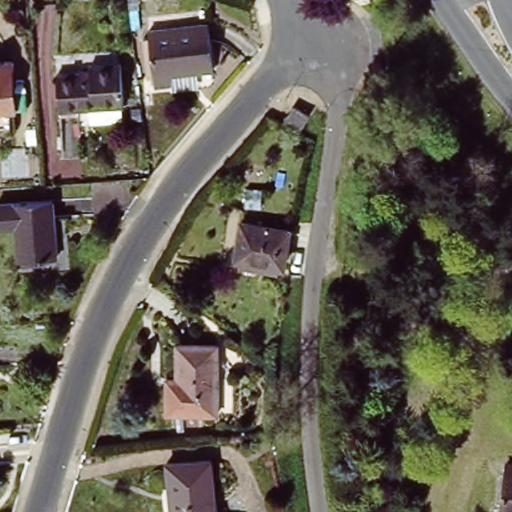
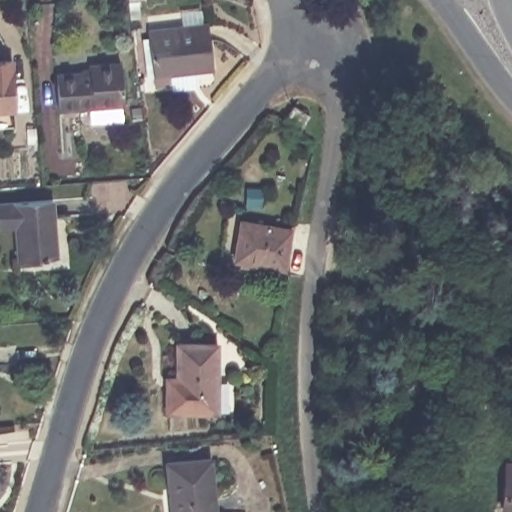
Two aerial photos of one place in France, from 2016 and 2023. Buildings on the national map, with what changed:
unchanged [(162,84),(162,80),(147,82),(137,27),(197,18),(204,65),(187,69),(187,81),(162,84)]
unchanged [(119,102),(116,102),(117,117),(80,121),(79,107),(54,110),(54,65),(107,60),(114,59),(119,102)]
unchanged [(14,61),(17,110),(0,111),(0,62),(14,61)]
unchanged [(308,114),(298,130),(284,120),(294,105),(308,114)]
unchanged [(13,225),(0,225),(0,204),(50,200),(55,258),(15,261),(13,225)]
unchanged [(279,230),(280,267),(232,268),(232,231),(279,230)]
unchanged [(172,377),(173,345),(215,346),(213,415),(162,414),(162,389),(163,377),(172,377)]
unchanged [(210,512),(166,512),(163,458),(206,455),(210,512)]
unchanged [(502,470),(512,471),(512,512),(501,512),(502,480),(502,470)]

